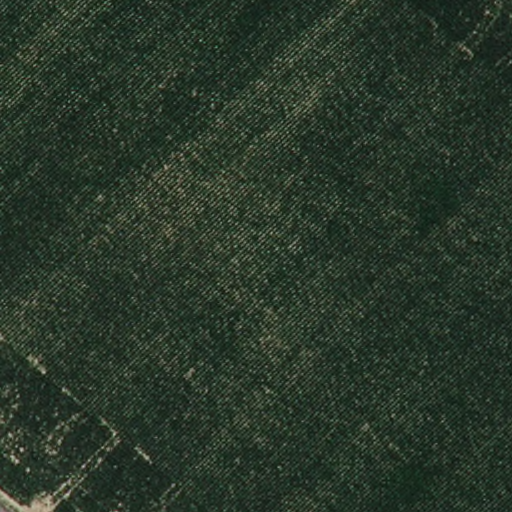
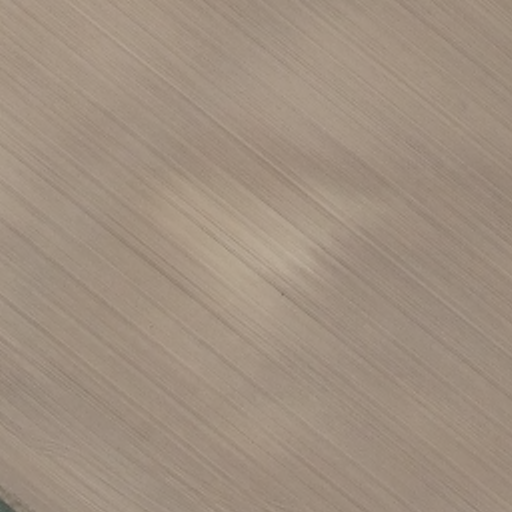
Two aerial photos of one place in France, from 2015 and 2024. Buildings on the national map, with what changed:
[]

